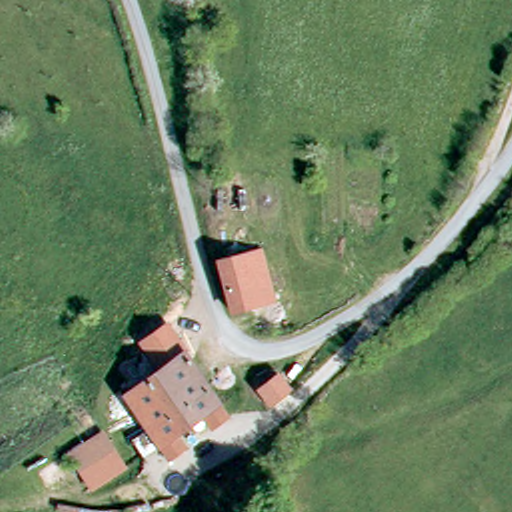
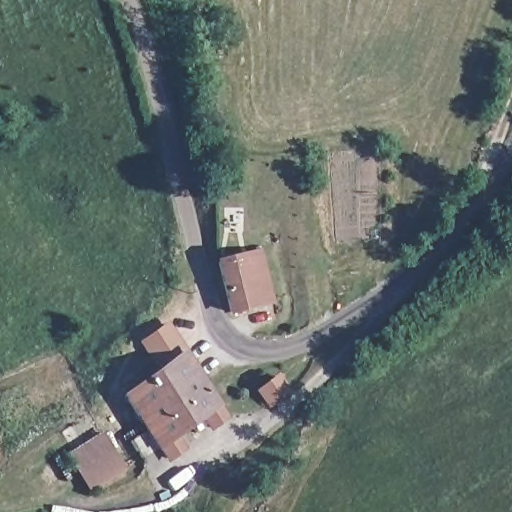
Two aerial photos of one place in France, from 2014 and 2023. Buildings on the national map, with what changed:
unchanged [(235,257),(260,250),(272,307),(250,312),(235,257)]
unchanged [(225,317),(212,264),(235,257),(250,312),(225,317)]
unchanged [(142,469),(129,452),(145,442),(123,398),(159,372),(142,347),(168,327),(190,365),(225,413),(142,469)]
unchanged [(283,383),(263,395),(254,380),(273,367),(283,383)]
unchanged [(117,451),(75,477),(62,456),(105,431),(117,451)]

